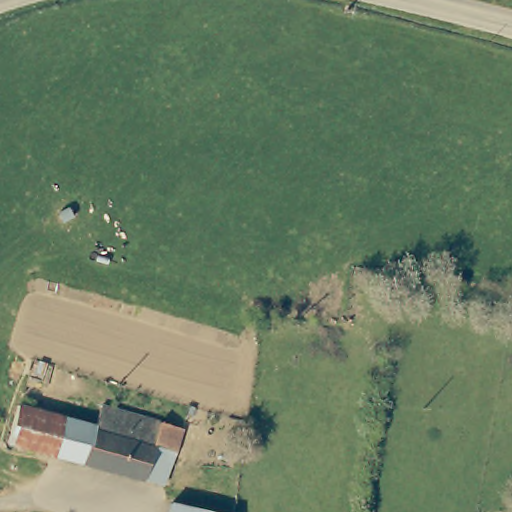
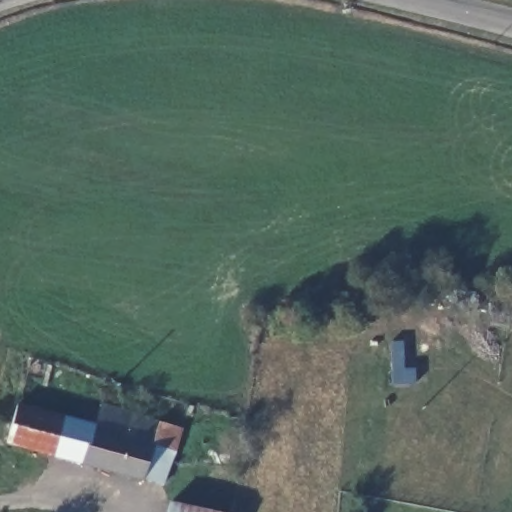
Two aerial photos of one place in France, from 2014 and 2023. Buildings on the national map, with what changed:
unchanged [(11,437),(20,402),(68,416),(67,421),(57,450),(57,451),(11,437)]
unchanged [(96,424),(101,405),(159,421),(142,477),(141,478),(91,463),(86,460),(57,451),(57,450),(67,421),(68,416),(96,424)]
unchanged [(159,421),(171,424),(181,428),(162,484),(142,477),(159,421)]
unchanged [(167,506),(199,512),(166,512),(167,506)]

